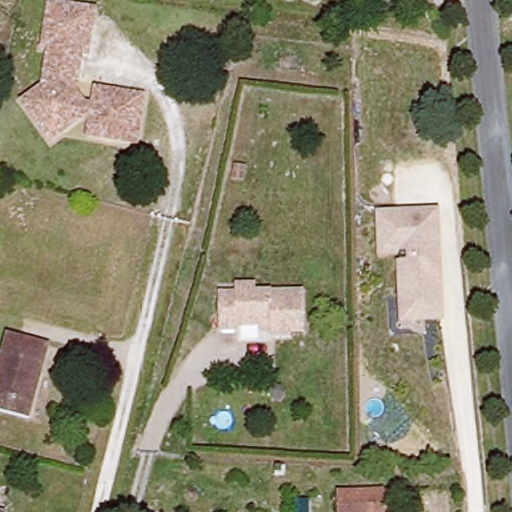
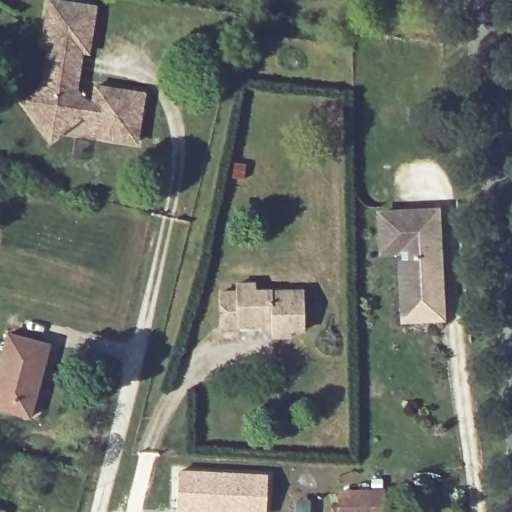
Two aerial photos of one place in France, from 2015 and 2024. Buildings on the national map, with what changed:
unchanged [(45,48),(38,47),(43,1),(90,6),(85,52),(78,51),(77,51),(45,48)]
unchanged [(59,77),(40,91),(45,48),(77,51),(78,51),(73,96),(59,77)]
unchanged [(36,128),(20,107),(40,91),(59,77),(73,96),(82,107),(82,110),(90,111),(93,91),(141,97),(136,146),(87,140),(89,124),(81,122),(64,135),(50,146),(36,128)]
unchanged [(396,255),(377,255),(375,208),(439,204),(446,320),(400,322),(396,255)]
unchanged [(302,330),(290,330),(289,338),(269,336),(269,330),(259,330),(259,325),(234,325),(234,331),(216,331),(217,293),(234,293),(233,283),(253,285),(253,292),(302,291),(302,330)]
unchanged [(29,422),(0,412),(0,357),(7,333),(50,350),(29,422)]
new [(178,468),(268,473),(266,512),(174,512),(178,468)]
unchanged [(381,512),(339,512),(338,495),(359,496),(381,496),(381,512)]

